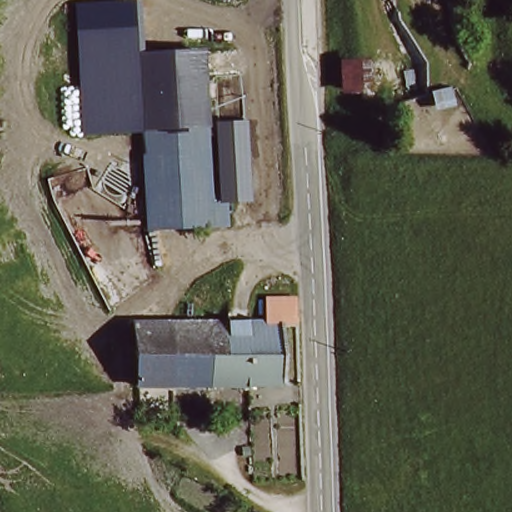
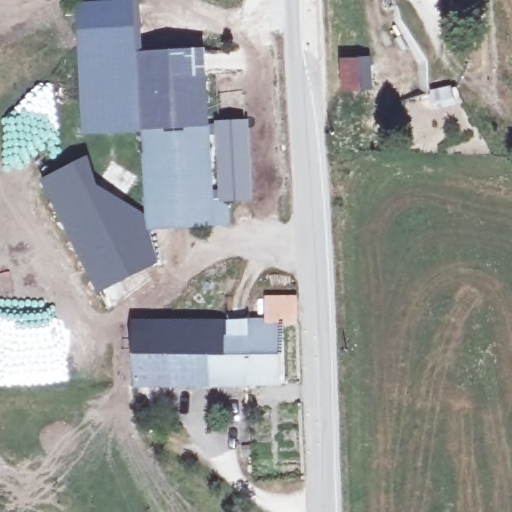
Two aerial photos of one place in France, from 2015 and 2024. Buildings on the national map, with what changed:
unchanged [(209,45),(213,195),(225,195),(226,227),(148,227),(145,128),(105,129),(87,129),(85,71),(84,27),(142,26),(143,47),(209,45)]
unchanged [(375,92),(343,94),(342,59),(373,60),(375,92)]
new [(248,120),(253,201),(225,201),(225,195),(221,195),(216,122),(248,120)]
new [(87,157),(99,186),(147,215),(148,227),(157,263),(98,293),(40,182),(87,157)]
unchanged [(204,320),(267,320),(267,294),(284,294),(294,295),(296,325),(287,326),(285,388),(206,388),(204,320)]
unchanged [(134,388),(132,320),(204,320),(206,388),(134,388)]

